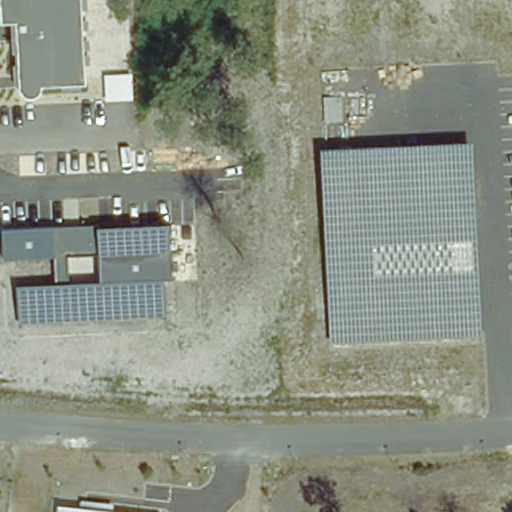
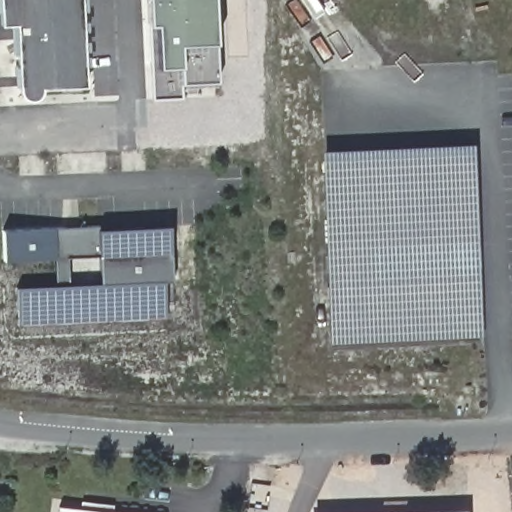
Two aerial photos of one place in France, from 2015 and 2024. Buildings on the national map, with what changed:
unchanged [(45,89),(41,98),(36,100),(27,99),(22,95),(21,91),(17,26),(3,26),(1,0),(82,0),(87,88),(45,89)]
new [(154,98),(151,67),(160,66),(156,22),(150,23),(149,0),(210,0),(216,80),(182,82),(180,96),(154,98)]
demolished [(105,104),(104,76),(132,75),(135,102),(105,104)]
unchanged [(486,336),(329,344),(321,152),(476,145),(486,336)]
unchanged [(175,282),(164,283),(166,320),(25,326),(22,286),(57,284),(55,259),(5,262),(2,230),(96,227),(96,230),(170,228),(175,282)]
unchanged [(62,503),(82,505),(84,501),(115,507),(114,512),(61,512),(62,503)]
new [(465,511),(465,512),(318,512),(317,511),(465,511)]

